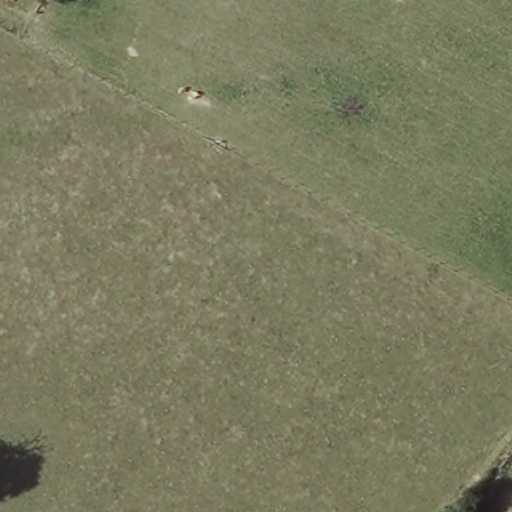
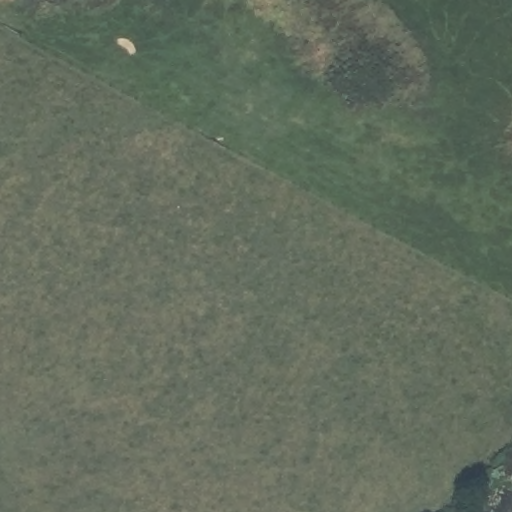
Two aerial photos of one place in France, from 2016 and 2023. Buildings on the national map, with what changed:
[]

